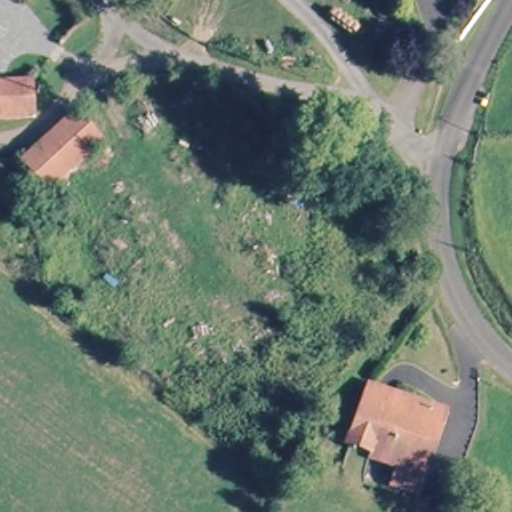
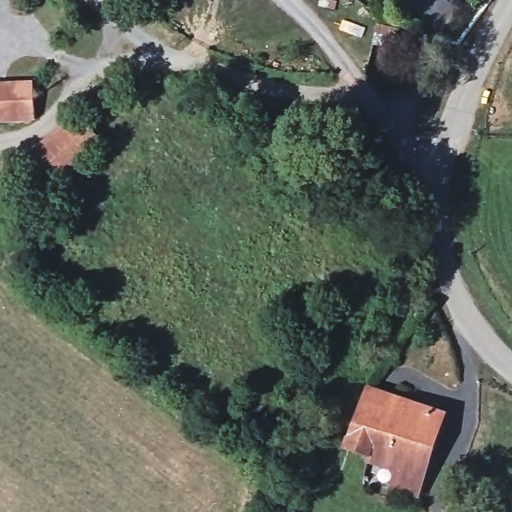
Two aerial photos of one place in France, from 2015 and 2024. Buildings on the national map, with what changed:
unchanged [(387,60),(362,56),(376,23),(376,22),(396,29),(387,60)]
unchanged [(0,80),(35,75),(41,109),(0,116),(0,80)]
unchanged [(41,209),(33,197),(41,189),(27,170),(72,124),(100,150),(41,209)]
unchanged [(370,394),(376,374),(410,383),(406,404),(450,418),(427,484),(351,453),(370,394)]

